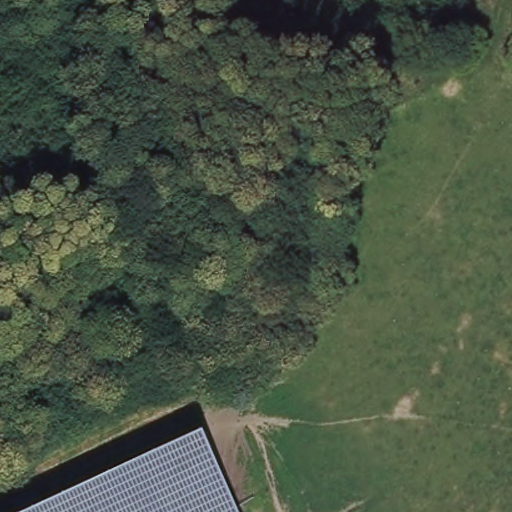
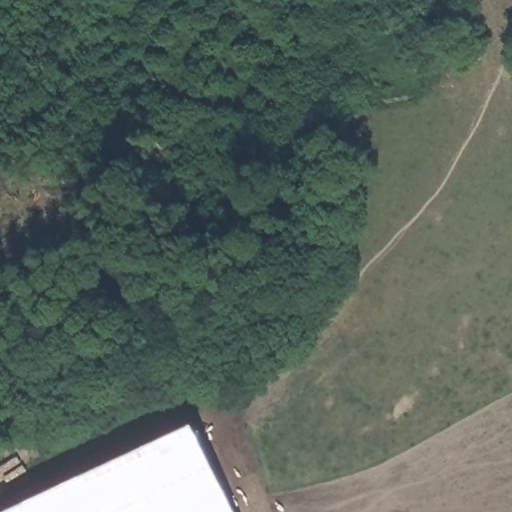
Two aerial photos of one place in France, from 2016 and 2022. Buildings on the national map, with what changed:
unchanged [(9,512),(195,425),(238,512),(9,512)]

